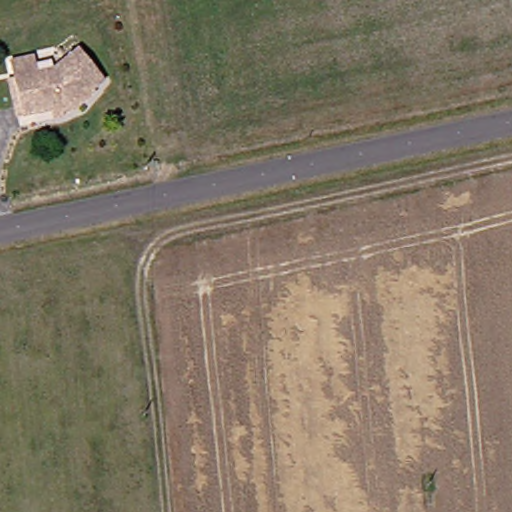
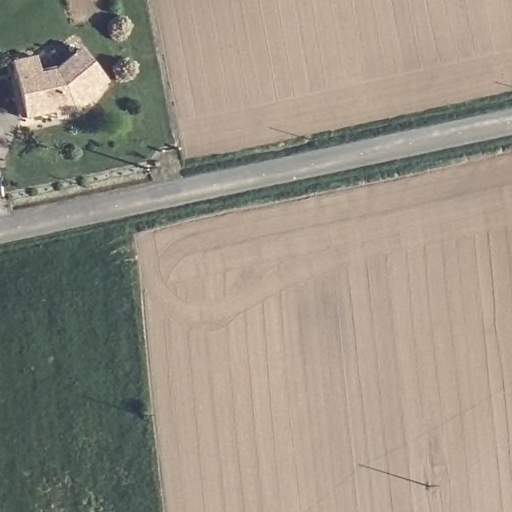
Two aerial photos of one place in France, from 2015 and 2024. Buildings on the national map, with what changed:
unchanged [(57,80),(82,56),(110,87),(96,100),(99,101),(83,117),(66,119),(62,116),(32,123),(20,86),(57,80)]

